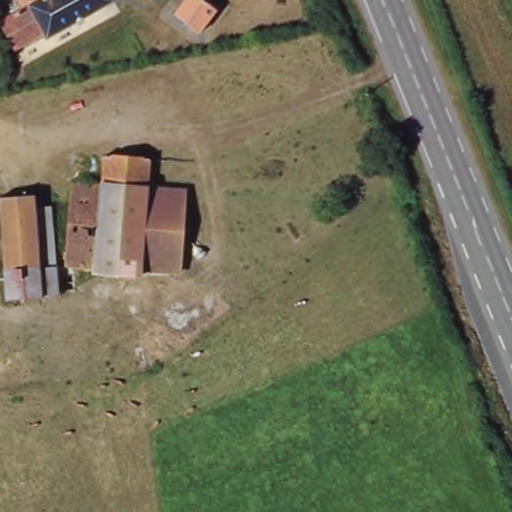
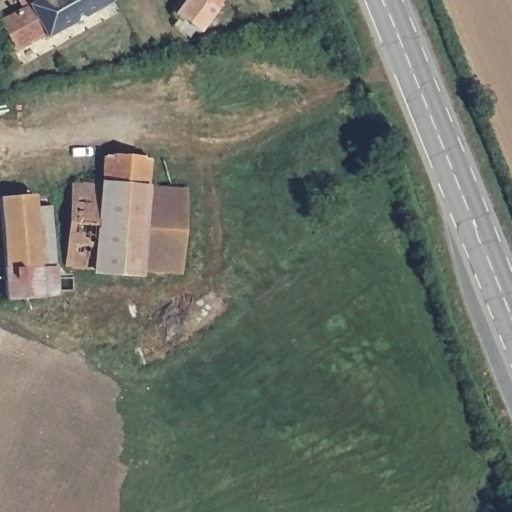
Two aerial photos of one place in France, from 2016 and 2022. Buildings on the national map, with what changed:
unchanged [(47,35),(42,30),(17,45),(2,20),(28,5),(25,0),(107,0),(47,35)]
unchanged [(201,26),(174,12),(182,0),(216,0),(201,26)]
unchanged [(98,180),(99,152),(144,155),(143,186),(183,189),(177,268),(138,266),(137,271),(92,268),(93,262),(63,260),(69,180),(98,180)]
unchanged [(39,266),(1,268),(0,248),(0,199),(35,198),(39,266)]
unchanged [(39,266),(40,297),(3,299),(1,268),(39,266)]

